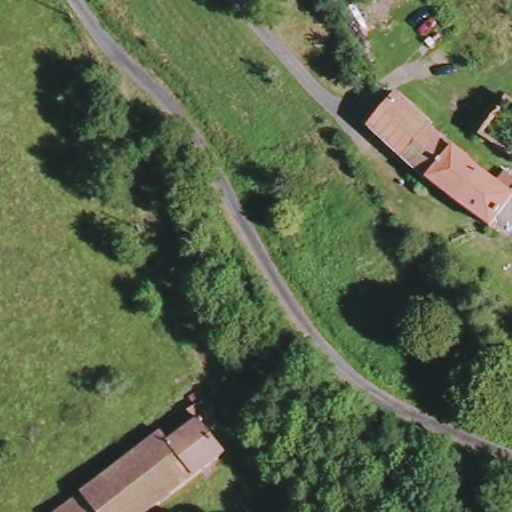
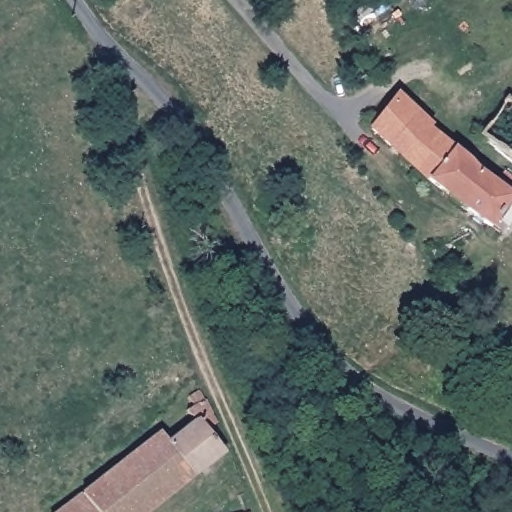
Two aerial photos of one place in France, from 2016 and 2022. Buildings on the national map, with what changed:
unchanged [(512,174),(512,206),(497,229),(477,212),(437,182),(422,170),(375,130),(401,97),(434,122),(432,127),(500,184),(507,172),(512,174)]
unchanged [(221,425),(212,435),(230,456),(200,479),(161,512),(100,512),(90,497),(169,433),(178,445),(202,424),(193,411),(200,405),(196,398),(206,390),(207,392),(221,425)]
unchanged [(70,512),(90,497),(100,512),(70,512)]

